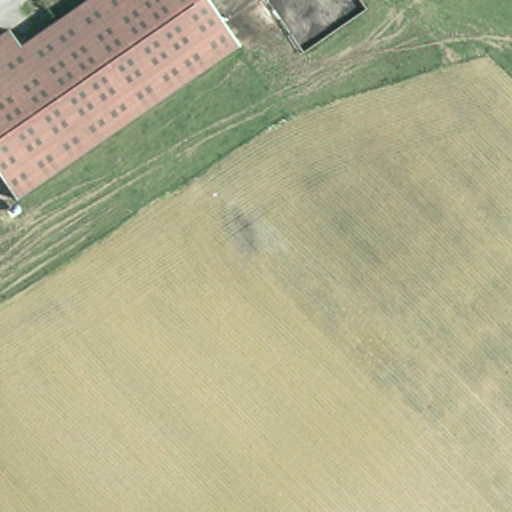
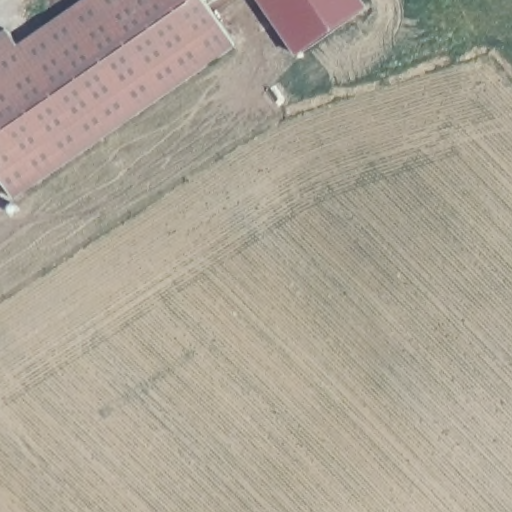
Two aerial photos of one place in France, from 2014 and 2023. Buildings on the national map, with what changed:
unchanged [(9,35),(19,51),(95,0),(201,0),(236,52),(15,205),(0,184),(0,42),(9,35)]
new [(374,5),(297,58),(258,0),(371,0),(374,5)]

